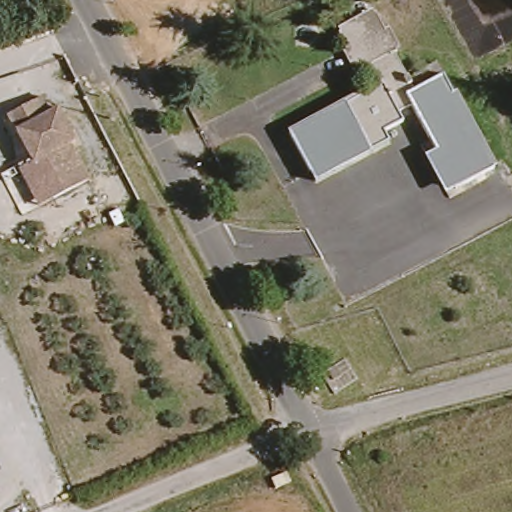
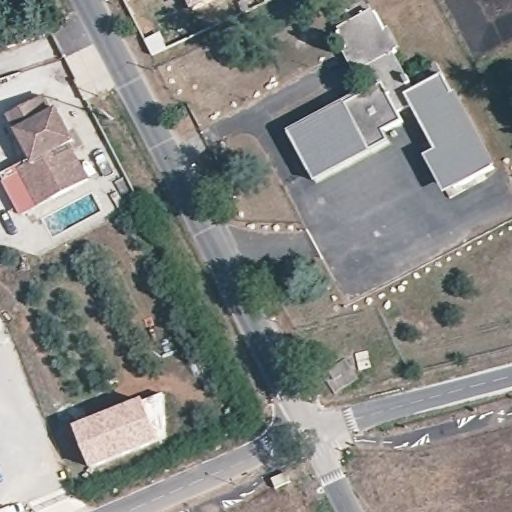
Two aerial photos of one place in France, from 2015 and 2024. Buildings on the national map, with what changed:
new [(187,0),(212,0),(191,10),(187,0)]
unchanged [(320,184),(294,135),(381,87),(370,67),(368,69),(360,73),(347,50),(350,48),(352,47),(343,33),(380,13),(400,51),(397,53),(412,80),(419,76),(442,64),(448,75),(499,169),(450,195),(429,156),(440,150),(416,105),(403,112),(408,121),(390,131),(395,142),(320,184)]
unchanged [(18,171),(36,162),(11,115),(45,96),(53,113),(58,110),(75,141),(70,144),(89,180),(71,190),(55,198),(38,208),(18,171)]
unchanged [(362,385),(339,400),(325,379),(349,364),(362,385)]
new [(125,405),(146,399),(155,421),(163,442),(92,471),(74,427),(125,405)]
unchanged [(287,473),(294,489),(274,494),(269,481),(287,473)]

